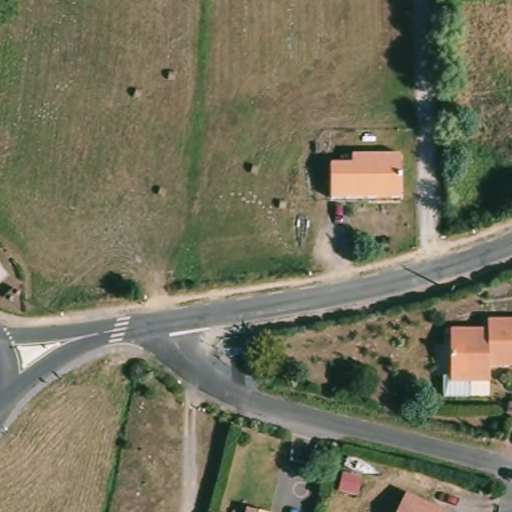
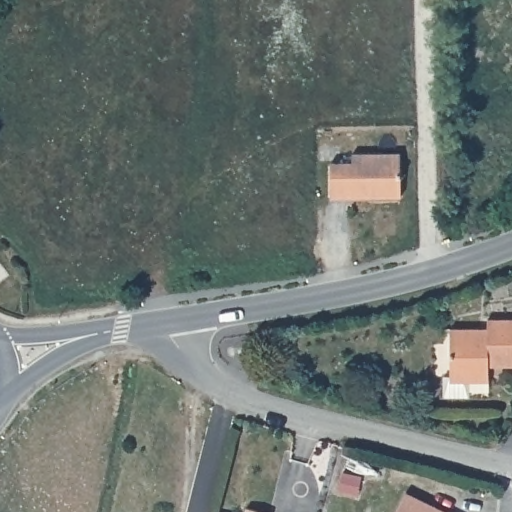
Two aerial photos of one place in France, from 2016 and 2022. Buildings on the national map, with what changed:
unchanged [(333,162),(355,162),(355,153),(403,152),(404,198),(334,199),(333,162)]
unchanged [(449,334),(486,334),(486,324),(512,324),(512,372),(506,372),(499,366),(488,366),(488,380),(468,380),(467,395),(443,395),(444,375),(449,375),(449,334)]
unchanged [(398,512),(406,497),(434,512),(398,512)]

